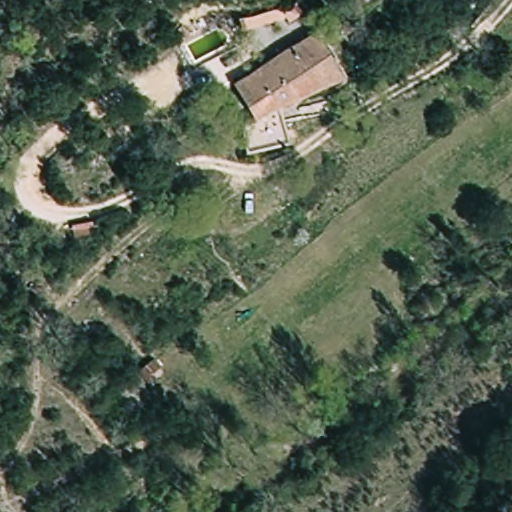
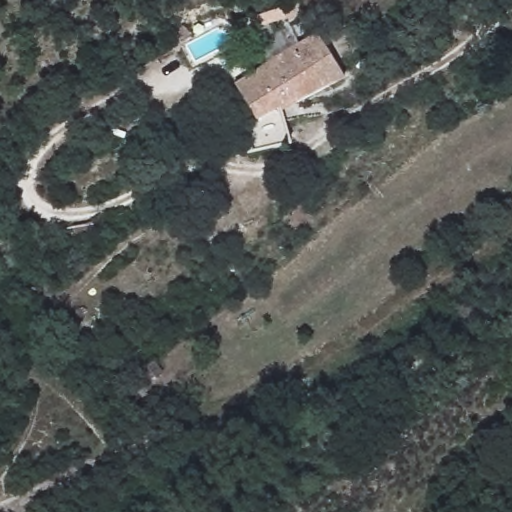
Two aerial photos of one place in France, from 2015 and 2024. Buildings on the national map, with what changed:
unchanged [(288,0),(291,0),(297,14),(282,21),(278,16),(240,31),(235,20),(288,0)]
unchanged [(253,159),(250,126),(260,121),(234,86),(310,36),(335,84),(293,105),(306,138),(253,159)]
unchanged [(158,55),(169,46),(176,56),(165,64),(158,55)]
unchanged [(152,382),(141,365),(154,356),(168,371),(152,382)]

